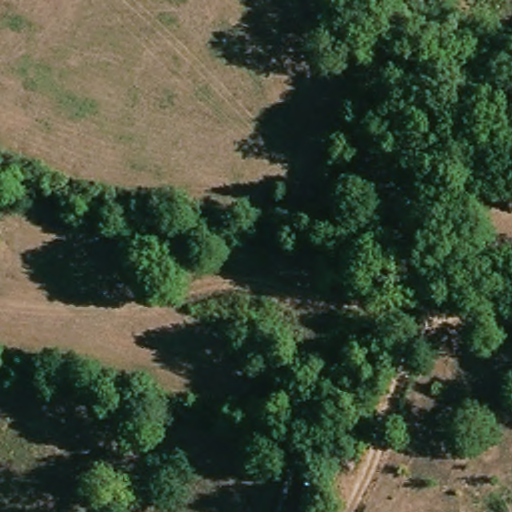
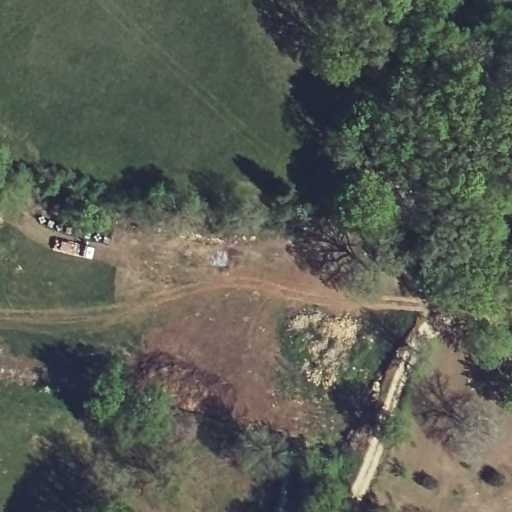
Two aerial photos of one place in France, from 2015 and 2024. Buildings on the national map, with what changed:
unchanged [(400,173),(383,222),(350,206),(367,160),(400,173)]

